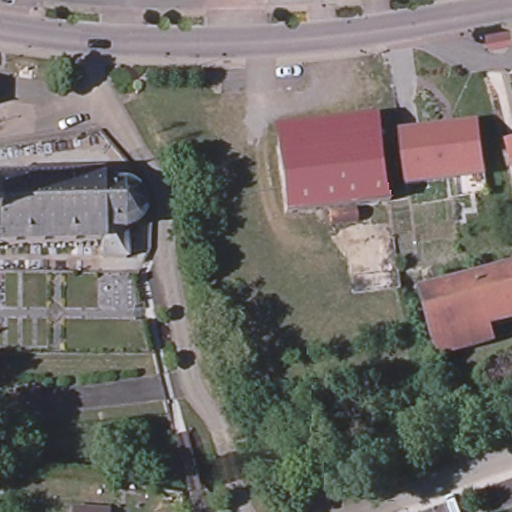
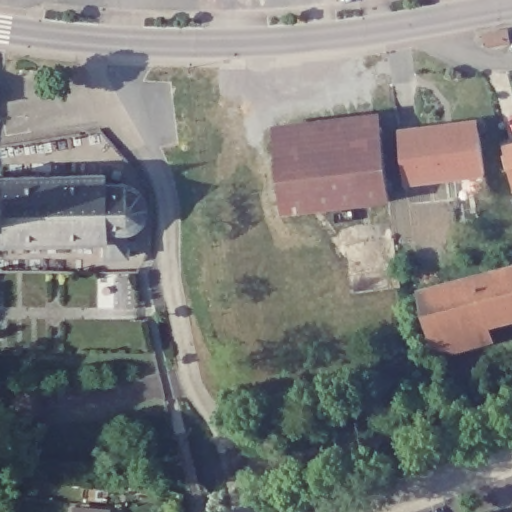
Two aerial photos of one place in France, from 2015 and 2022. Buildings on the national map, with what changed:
unchanged [(510,30),(512,40),(490,44),(488,33),(510,30)]
unchanged [(274,143),(272,122),(376,110),(378,131),(274,143)]
unchanged [(408,182),(402,131),(448,125),(481,121),(481,126),(487,173),(408,182)]
unchanged [(282,209),(274,143),(378,131),(387,197),(282,209)]
unchanged [(508,146),(512,145),(512,161),(508,146)]
unchanged [(102,254),(102,237),(0,239),(0,171),(105,169),(105,180),(131,180),(134,181),(137,182),(139,183),(142,185),(144,187),(146,189),(147,192),(148,195),(149,197),(150,200),(150,203),(150,206),(149,209),(148,212),(147,215),(145,217),(143,219),(141,221),(139,223),(136,225),(133,226),(131,226),(127,227),(127,254),(102,254)]
unchanged [(497,269),(512,266),(512,320),(490,326),(478,274),(497,269)]
unchanged [(420,290),(478,274),(490,326),(433,341),(420,290)]
unchanged [(41,415),(23,417),(20,392),(38,390),(41,415)]
unchanged [(76,512),(76,511),(90,512),(76,512)]

